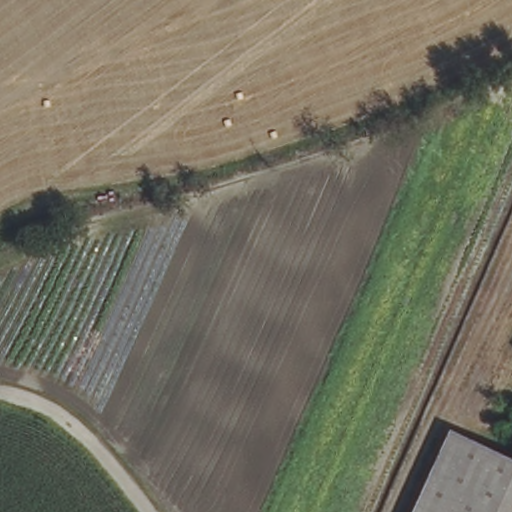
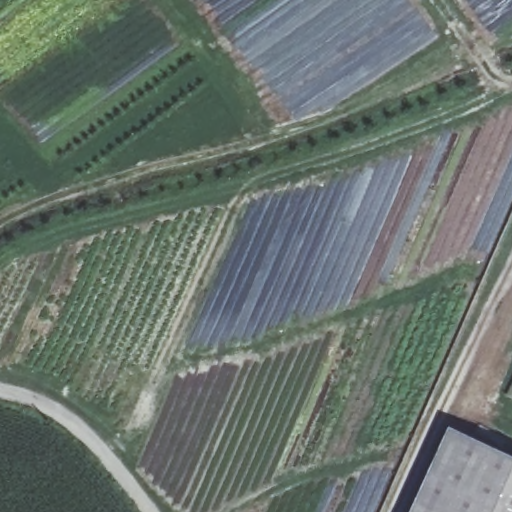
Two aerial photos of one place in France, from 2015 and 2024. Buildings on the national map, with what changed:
unchanged [(512,512),(418,512),(456,427),(512,453),(512,512)]

